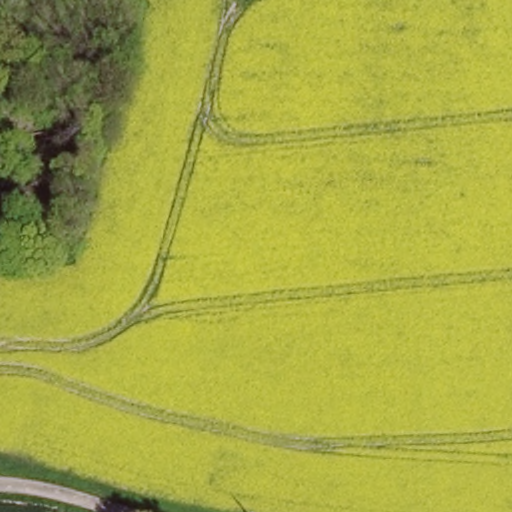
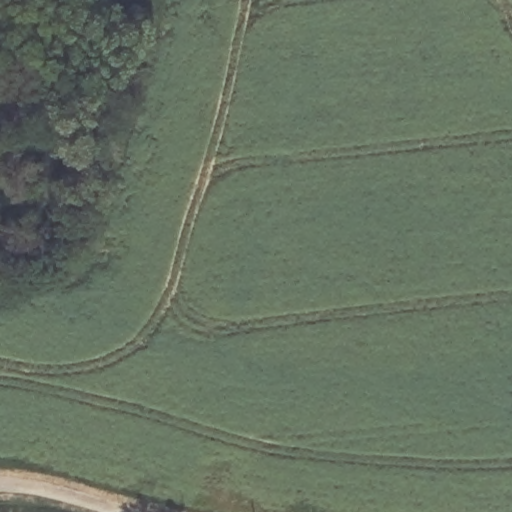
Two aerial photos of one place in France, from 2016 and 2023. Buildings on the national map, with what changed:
[]

